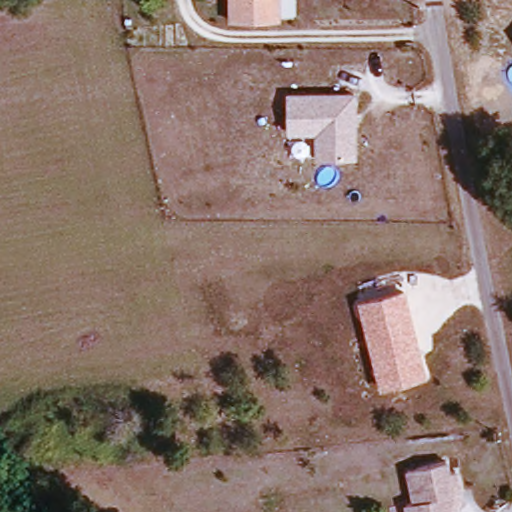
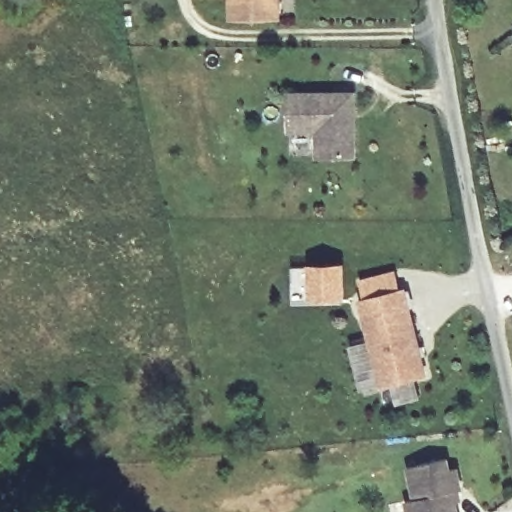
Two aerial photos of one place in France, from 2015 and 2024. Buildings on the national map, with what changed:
unchanged [(230,0),(282,0),(282,19),(230,19),(230,0)]
unchanged [(288,91),(357,92),(360,158),(316,158),(316,132),(289,132),(288,91)]
new [(344,261),(345,300),(290,304),(289,266),(344,261)]
unchanged [(426,376),(382,388),(359,297),(405,285),(426,376)]
unchanged [(415,496),(407,464),(444,454),(447,465),(454,463),(460,484),(457,485),(460,496),(455,497),(459,512),(411,512),(407,498),(415,496)]

